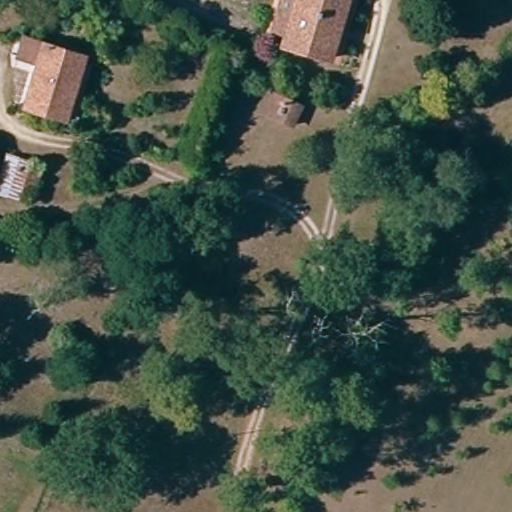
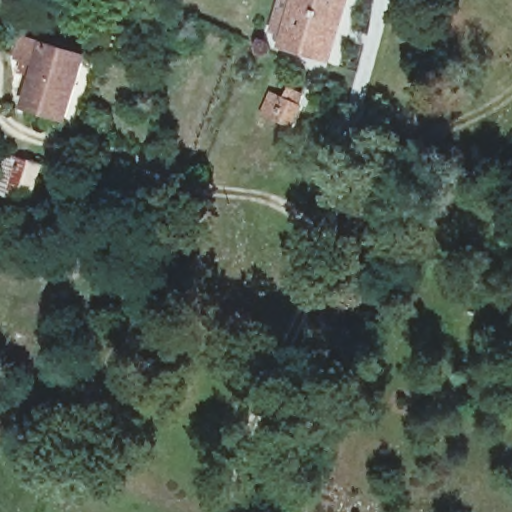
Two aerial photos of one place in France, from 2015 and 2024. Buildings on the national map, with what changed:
unchanged [(324,62),(281,50),(283,45),(268,40),(275,15),(280,0),(342,0),(324,62)]
unchanged [(78,55),(63,111),(62,117),(58,116),(21,106),(33,62),(13,56),(18,38),(29,41),(71,51),(78,54),(78,55)]
unchanged [(262,116),(272,91),(294,100),(285,122),(262,116)]
unchanged [(0,204),(0,146),(41,151),(32,209),(0,204)]

